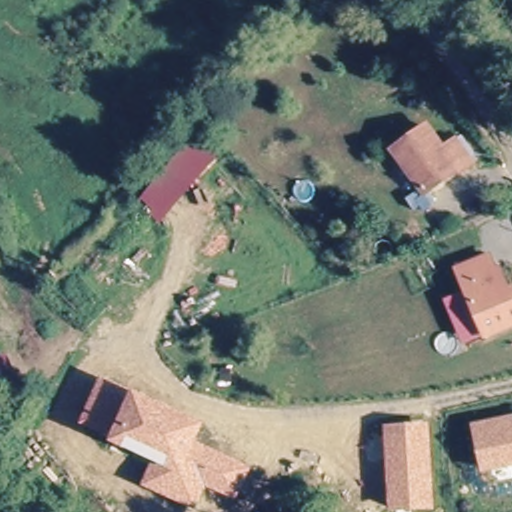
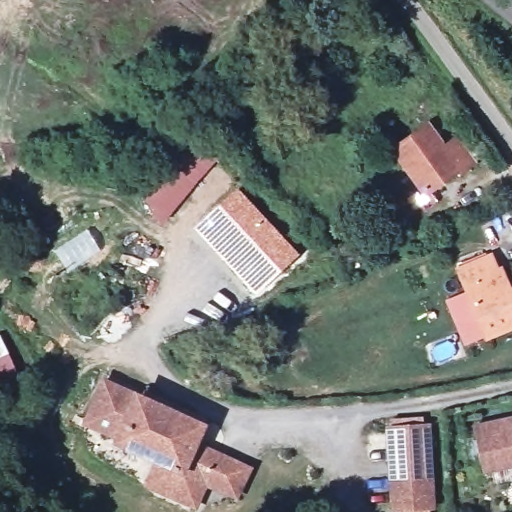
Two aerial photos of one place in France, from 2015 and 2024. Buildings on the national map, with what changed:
unchanged [(163,225),(150,215),(154,211),(141,199),(199,127),(226,148),(163,225)]
unchanged [(455,178),(450,172),(419,198),(390,154),(420,132),(443,159),(452,150),(468,169),(455,178)]
new [(194,228),(238,188),(299,256),(256,295),(194,228)]
unchanged [(460,267),(493,255),(498,270),(502,269),(510,291),(512,290),(512,326),(486,336),(460,267)]
new [(9,354),(8,359),(12,358),(17,383),(0,386),(0,340),(9,354)]
unchanged [(200,425),(193,442),(252,469),(238,502),(205,487),(196,510),(142,486),(153,461),(79,426),(100,377),(200,425)]
unchanged [(472,423),(512,414),(512,470),(482,476),(472,423)]
unchanged [(435,511),(412,512),(388,512),(385,426),(429,423),(435,511)]

